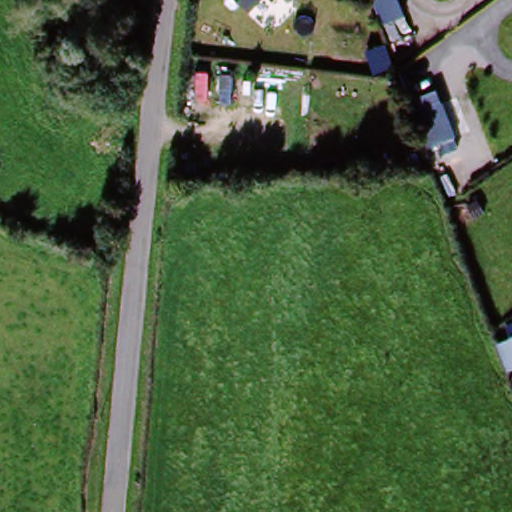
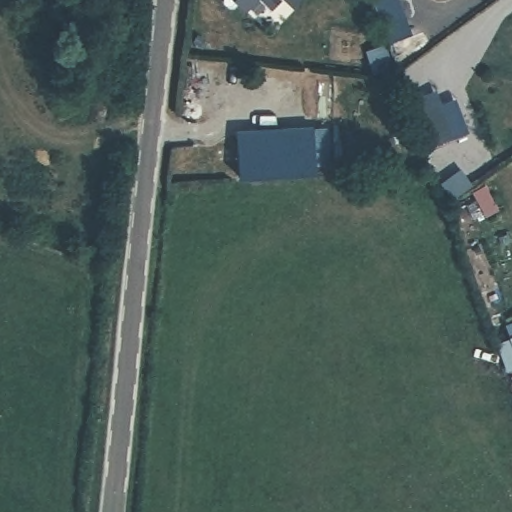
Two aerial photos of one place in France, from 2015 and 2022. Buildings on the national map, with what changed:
unchanged [(227,1),(227,0),(237,0),(233,3),(227,1)]
unchanged [(246,5),(242,0),(252,0),(246,5)]
unchanged [(418,20),(398,29),(387,0),(410,0),(418,20)]
unchanged [(443,101),(456,136),(423,145),(412,111),(443,101)]
new [(313,124),(315,170),(239,171),(238,126),(313,124)]
unchanged [(512,333),(512,365),(501,337),(512,333)]

